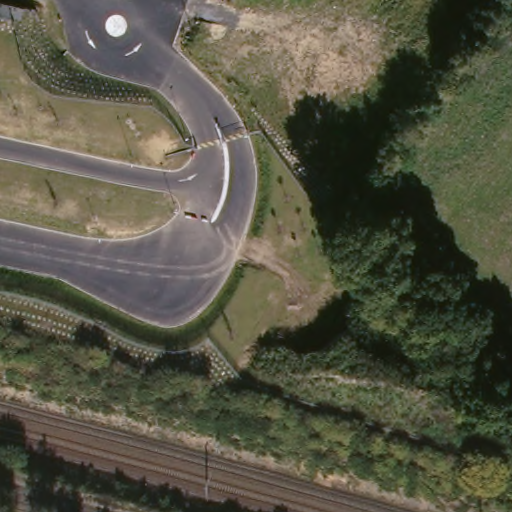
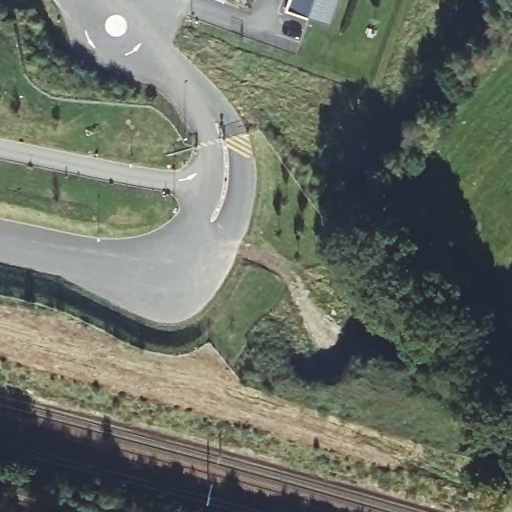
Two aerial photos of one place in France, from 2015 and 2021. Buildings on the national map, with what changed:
new [(337,0),(329,23),(284,7),(287,0),(337,0)]

